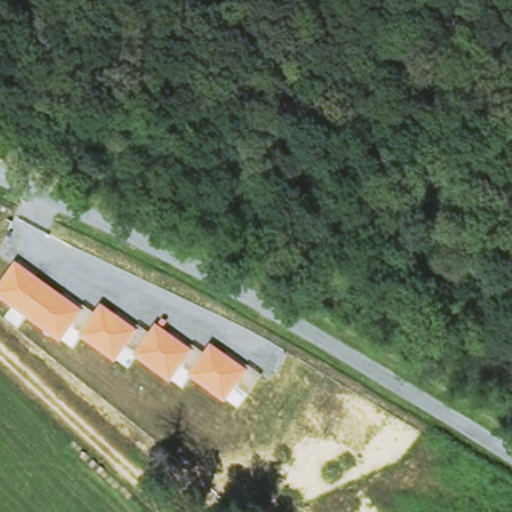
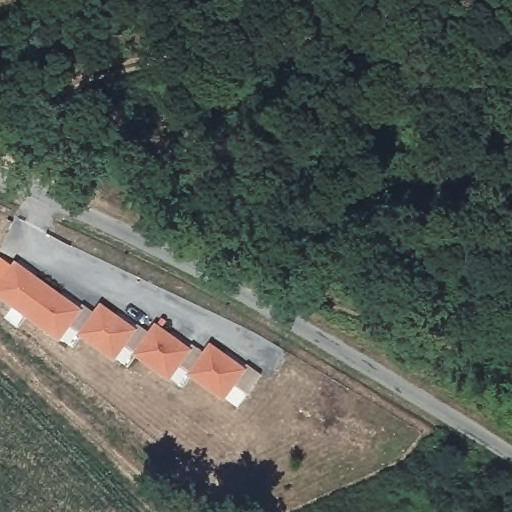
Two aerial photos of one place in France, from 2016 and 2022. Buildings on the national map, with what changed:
unchanged [(14,262),(91,315),(99,304),(145,337),(154,325),(201,355),(208,345),(246,370),(224,402),(176,369),(169,383),(123,350),(113,363),(67,330),(58,343),(0,300),(0,280),(14,262)]

